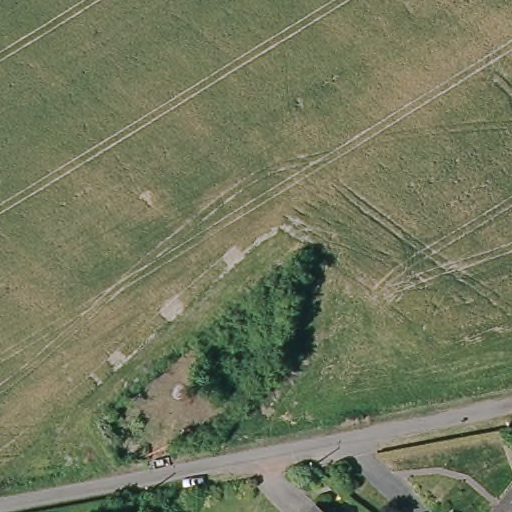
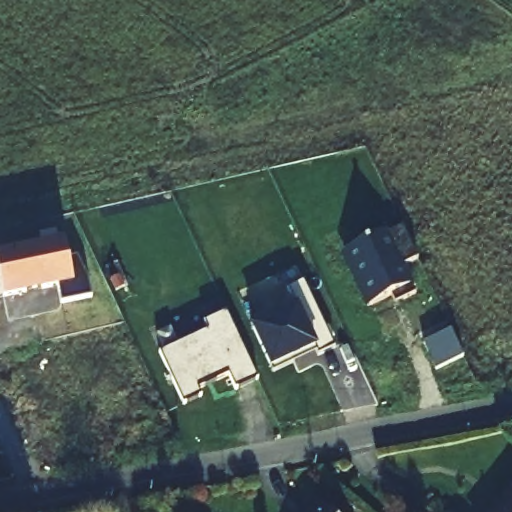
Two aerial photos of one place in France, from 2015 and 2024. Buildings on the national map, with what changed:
new [(418,260),(403,267),(417,293),(394,305),(389,296),(365,308),(341,256),(403,229),(418,260)]
new [(70,261),(77,260),(88,285),(91,299),(61,304),(58,288),(4,301),(0,278),(0,254),(64,242),(70,261)]
new [(333,348),(318,356),(316,352),(274,372),(271,370),(250,327),(296,307),(286,292),(302,283),(333,348)]
new [(258,380),(236,390),(228,375),(196,389),(199,397),(183,403),(158,354),(207,332),(203,323),(226,312),(258,380)]
new [(462,357),(436,371),(423,345),(451,331),(462,357)]
demolished [(131,429),(110,442),(98,421),(118,408),(131,429)]
unchanged [(488,505),(486,503),(512,469),(512,512),(482,512),(488,505)]
unchanged [(316,505),(326,512),(310,512),(316,505)]

